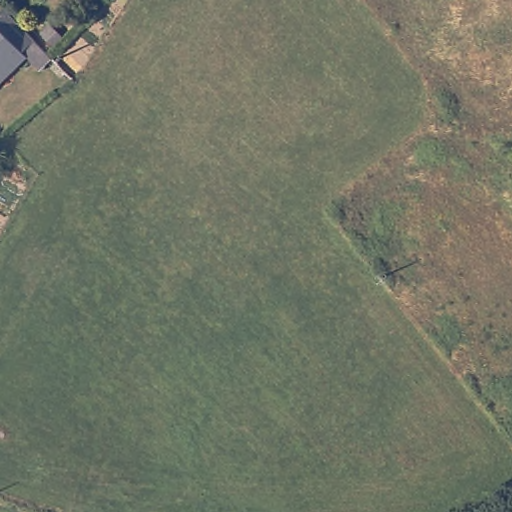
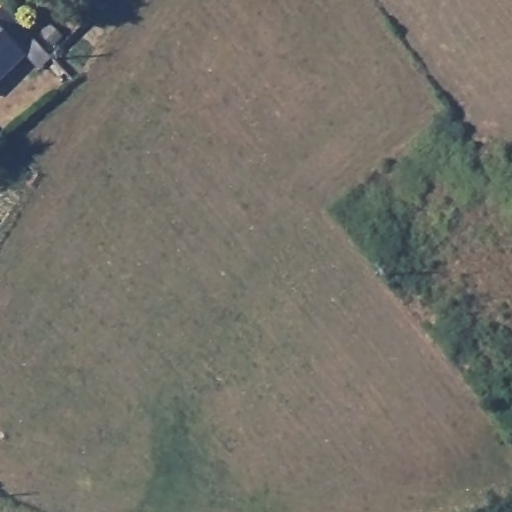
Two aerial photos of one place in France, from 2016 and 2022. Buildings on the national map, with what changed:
unchanged [(1,25),(11,16),(20,25),(22,23),(42,43),(29,55),(35,61),(31,65),(0,94),(0,24),(1,25)]

